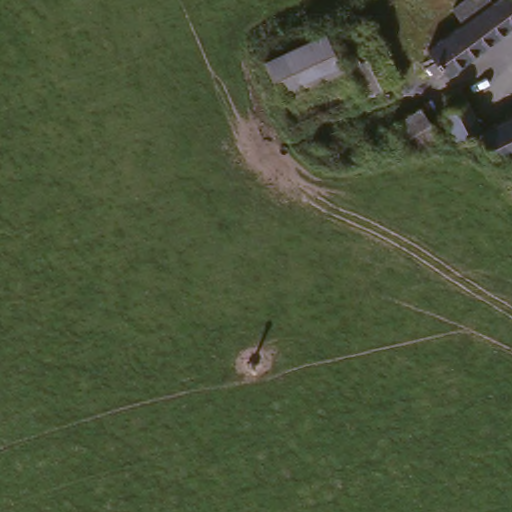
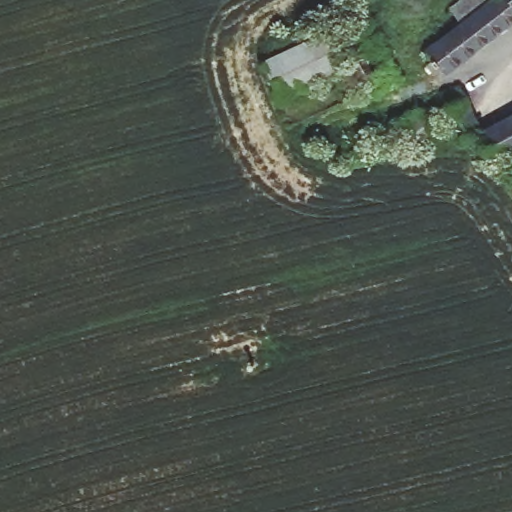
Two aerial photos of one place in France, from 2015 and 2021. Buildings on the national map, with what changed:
unchanged [(430,47),(450,32),(440,17),(463,0),(493,0),(494,2),(496,0),(512,0),(512,23),(446,71),(430,47)]
unchanged [(403,70),(371,90),(335,27),(366,8),(403,70)]
unchanged [(271,60),(311,35),(327,26),(348,62),(332,72),(291,96),(271,60)]
unchanged [(470,145),(451,115),(458,111),(452,98),(466,87),(493,130),(512,119),(512,152),(505,156),(494,163),(480,142),(470,146),(470,145)]
unchanged [(435,137),(412,149),(398,122),(420,111),(435,137)]

